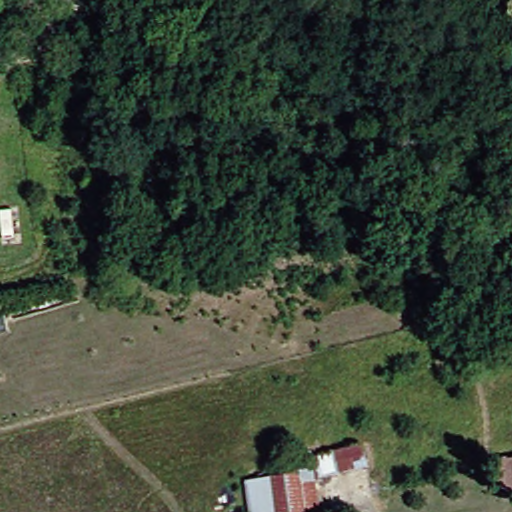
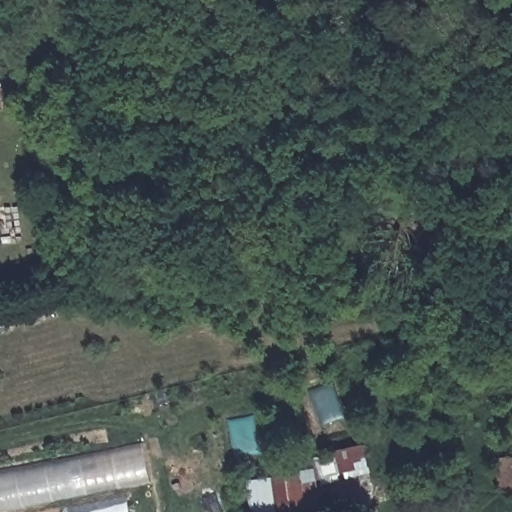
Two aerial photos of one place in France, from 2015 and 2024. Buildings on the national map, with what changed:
new [(143,443),(151,484),(3,512),(0,512),(0,471),(143,443)]
unchanged [(365,451),(366,474),(315,478),(313,453),(365,451)]
unchanged [(484,458),(512,456),(512,486),(485,487),(484,458)]
unchanged [(297,472),(303,512),(247,512),(243,477),(297,472)]
unchanged [(357,480),(360,512),(339,512),(335,482),(357,480)]
unchanged [(321,489),(324,512),(306,512),(302,492),(321,489)]
new [(66,510),(127,499),(130,512),(67,512),(66,510)]

